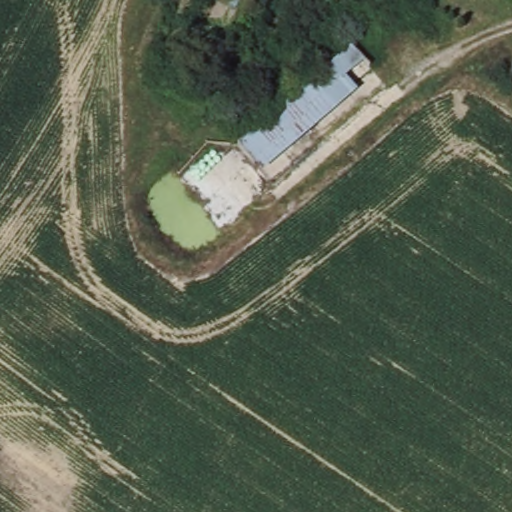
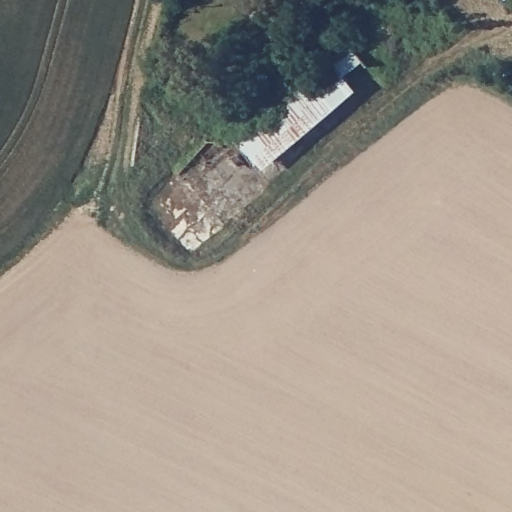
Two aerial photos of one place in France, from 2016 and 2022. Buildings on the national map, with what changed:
unchanged [(348,36),(382,76),(268,172),(250,151),(234,132),(307,71),(348,36)]

